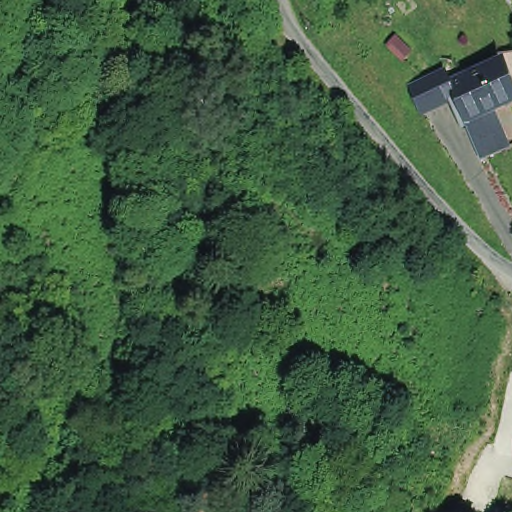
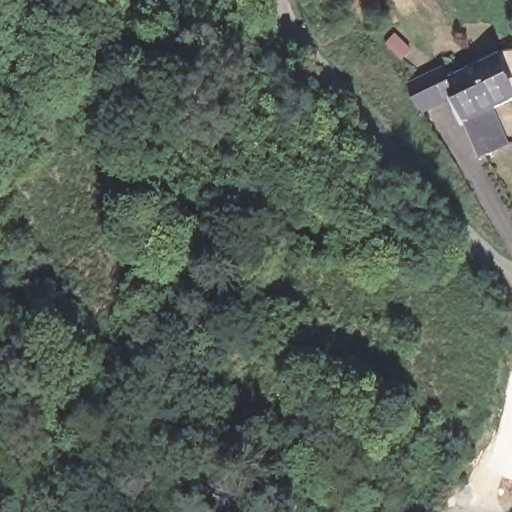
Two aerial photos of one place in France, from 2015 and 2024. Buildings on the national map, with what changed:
unchanged [(494,155),(475,162),(460,126),(453,111),(448,100),(415,114),(407,94),(405,90),(438,76),(440,76),(445,90),(456,86),(455,82),(454,81),(481,70),(495,64),(510,57),(512,60),(512,89),(507,92),(512,104),(486,115),(502,152),(494,155)]

